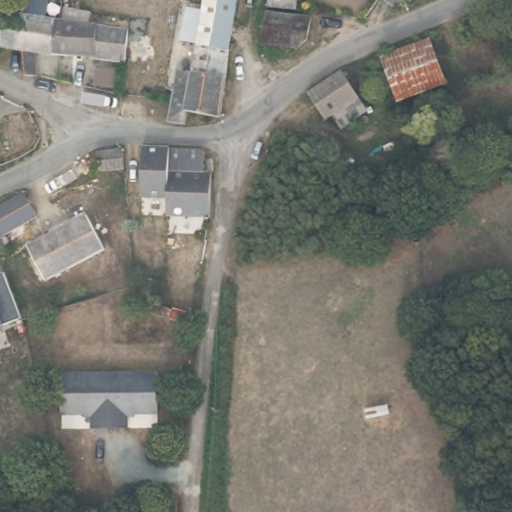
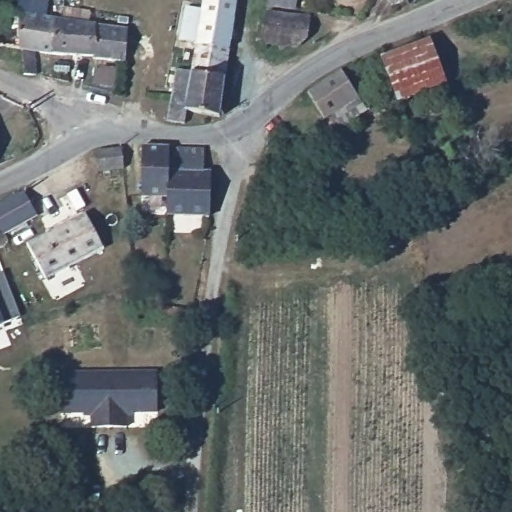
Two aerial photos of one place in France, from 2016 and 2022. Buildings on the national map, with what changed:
unchanged [(99,55),(98,53),(57,51),(45,50),(39,50),(41,72),(30,73),(27,47),(22,13),(24,0),(53,0),(51,16),(134,27),(131,53),(130,60),(99,55)]
unchanged [(187,109),(185,123),(168,120),(174,94),(179,67),(181,67),(185,50),(197,51),(199,43),(182,40),(184,25),(187,9),(204,11),(205,0),(237,0),(221,115),(219,115),(187,109)]
unchanged [(266,0),(293,0),(292,7),(265,4),(266,0)]
unchanged [(393,4),(388,4),(381,0),(409,0),(408,1),(403,3),(393,4)]
unchanged [(2,45),(1,51),(0,51),(0,11),(2,12),(22,13),(27,47),(2,45)]
unchanged [(295,45),(293,46),(257,41),(263,11),(306,16),(302,39),(295,45)]
unchanged [(397,100),(382,59),(430,41),(444,84),(397,100)]
unchanged [(361,105),(348,112),(342,104),(321,116),(318,114),(303,89),(337,68),(351,89),(361,105)]
unchanged [(170,219),(163,218),(164,198),(139,197),(142,146),(166,146),(166,151),(202,153),(202,172),(209,172),(205,219),(170,219)]
unchanged [(92,164),(92,148),(121,147),(120,165),(92,164)]
unchanged [(327,162),(326,163),(325,163),(324,163),(322,163),(321,163),(320,162),(319,161),(318,161),(317,160),(317,159),(317,158),(317,157),(317,156),(317,155),(317,154),(317,153),(318,152),(319,151),(320,151),(321,150),(322,150),(323,150),(325,150),(326,150),(327,151),(328,151),(327,161),(327,162)]
unchanged [(43,210),(16,227),(22,238),(12,244),(6,234),(2,236),(0,233),(0,204),(28,188),(43,210)]
unchanged [(47,280),(31,243),(90,219),(105,256),(47,280)]
unchanged [(0,327),(0,273),(2,272),(20,317),(3,326),(0,327)]
unchanged [(169,378),(165,418),(131,414),(129,429),(110,428),(90,426),(91,411),(57,408),(60,368),(169,378)]

